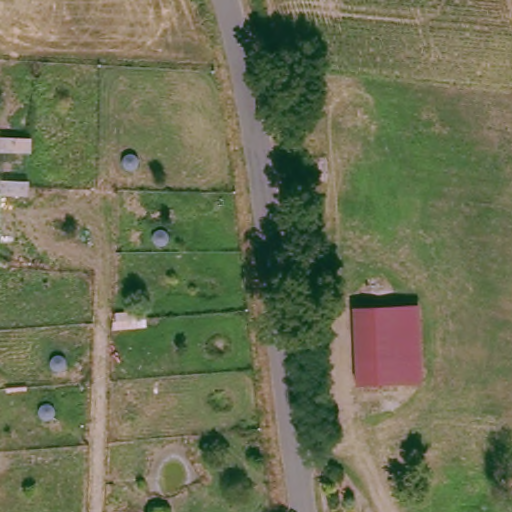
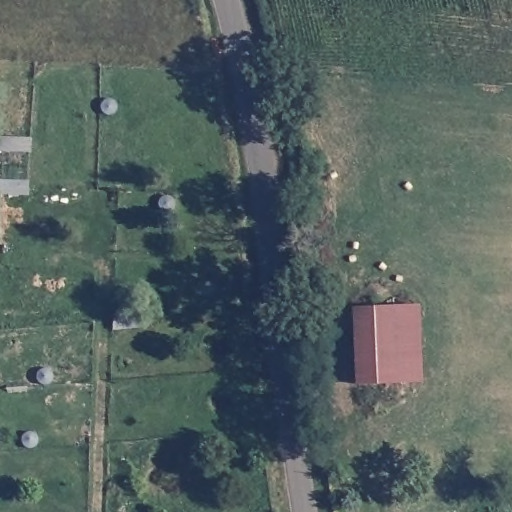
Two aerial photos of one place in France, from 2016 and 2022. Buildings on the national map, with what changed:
unchanged [(27,194),(0,192),(0,177),(28,177),(27,194)]
unchanged [(421,385),(353,387),(350,311),(418,307),(421,385)]

